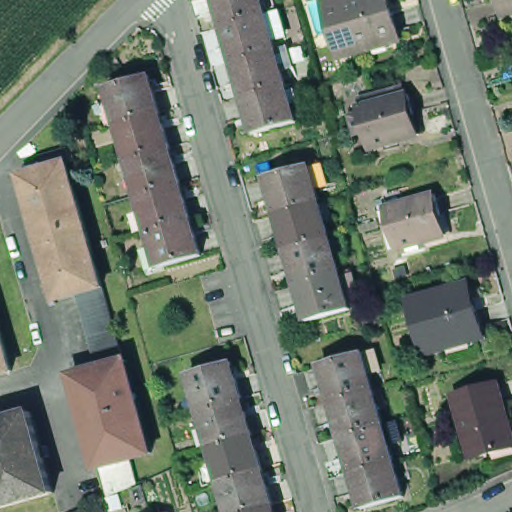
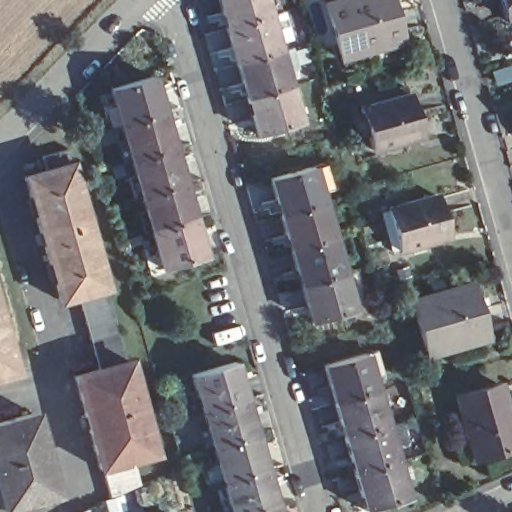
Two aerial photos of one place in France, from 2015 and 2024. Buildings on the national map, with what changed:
unchanged [(298,123),(257,135),(246,98),(235,63),(225,28),(218,0),(271,0),(273,8),(266,10),(267,15),(275,13),(280,34),(273,36),(278,51),(285,49),(291,70),(284,71),(288,86),(295,84),(301,105),(294,107),(298,123)]
unchanged [(365,52),(342,59),(325,4),(338,0),(390,0),(392,10),(400,36),(402,41),(365,52)]
unchanged [(500,0),(512,0),(512,16),(505,18),(500,0)]
unchanged [(151,232),(143,234),(137,213),(145,211),(140,196),(133,198),(127,177),(135,175),(130,161),(123,163),(117,141),(125,139),(120,125),(115,126),(113,127),(107,106),(114,104),(110,89),(152,76),(162,113),(172,149),(182,184),(192,220),(203,256),(162,268),(154,271),(148,248),(155,246),(151,232)]
unchanged [(352,121),(362,119),(360,114),(370,111),(368,102),(405,92),(407,101),(410,100),(416,120),(416,121),(422,140),(417,141),(372,155),(367,138),(357,141),(352,121)]
unchanged [(73,376),(98,369),(95,354),(90,338),(86,323),(82,309),(78,296),(60,301),(24,177),(45,171),(42,156),(69,149),(73,164),(70,165),(105,288),(105,287),(109,302),(113,316),(117,331),(122,346),(126,361),(128,361),(129,362),(123,364),(148,454),(153,452),(154,454),(132,460),(137,474),(140,485),(110,498),(105,482),(102,468),(99,469),(73,376)]
unchanged [(275,215),(264,178),(306,166),(313,164),(320,187),(312,189),(317,203),(323,201),(330,222),(322,224),(327,238),(340,234),(346,255),(332,259),(337,273),(342,272),(344,271),(350,292),(343,295),(347,310),(305,322),(295,286),(285,250),(275,215)]
unchanged [(405,253),(404,247),(393,250),(382,209),(432,195),(438,215),(438,216),(443,236),(438,237),(414,244),(415,250),(405,253)]
unchanged [(487,343),(450,354),(427,360),(410,306),(467,290),(470,289),(477,311),(484,336),(487,343)]
unchanged [(15,372),(0,376),(0,322),(15,372)]
unchanged [(343,442),(333,407),(323,370),(365,358),(377,355),(383,377),(371,380),(375,395),(382,393),(388,414),(382,416),(385,430),(393,428),(399,449),(392,452),(395,466),(403,464),(409,485),(402,487),(406,503),(373,512),(364,512),(353,478),(343,442)]
unchanged [(220,499),(227,497),(222,482),(220,483),(215,484),(209,463),(217,461),(212,447),(210,448),(205,449),(198,428),(206,426),(202,412),(195,414),(188,393),(196,391),(191,375),(233,363),(245,400),(255,435),(265,470),(275,505),(277,512),(223,512),(220,499)]
unchanged [(461,401),(505,389),(512,415),(512,455),(479,464),(461,401)]
unchanged [(0,508),(0,420),(27,413),(50,494),(0,508)]

